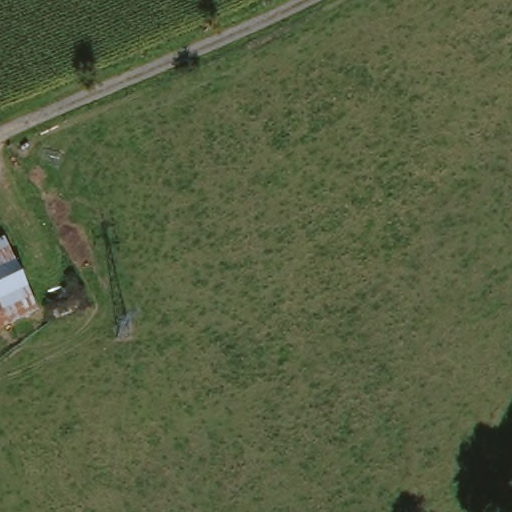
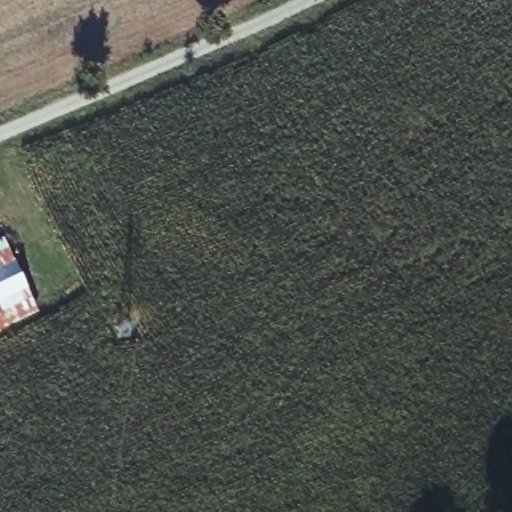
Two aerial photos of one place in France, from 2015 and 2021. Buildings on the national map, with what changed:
unchanged [(13,260),(36,308),(0,327),(0,236),(3,234),(13,260)]

